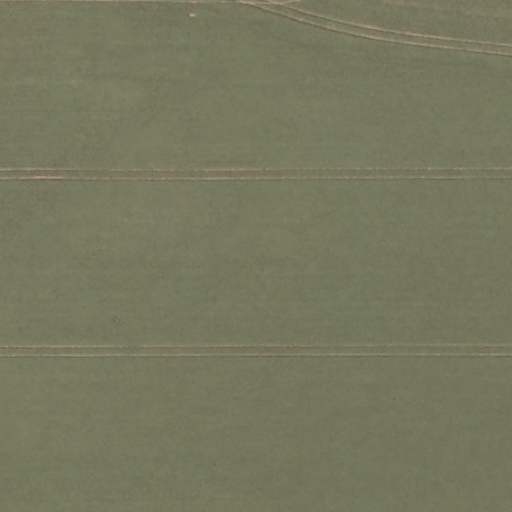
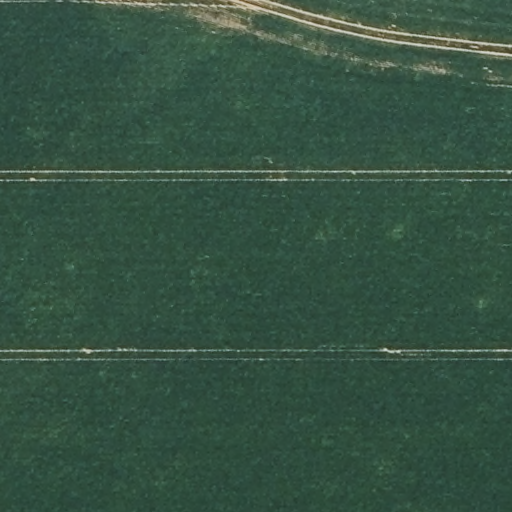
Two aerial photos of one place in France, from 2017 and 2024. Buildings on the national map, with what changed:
[]

